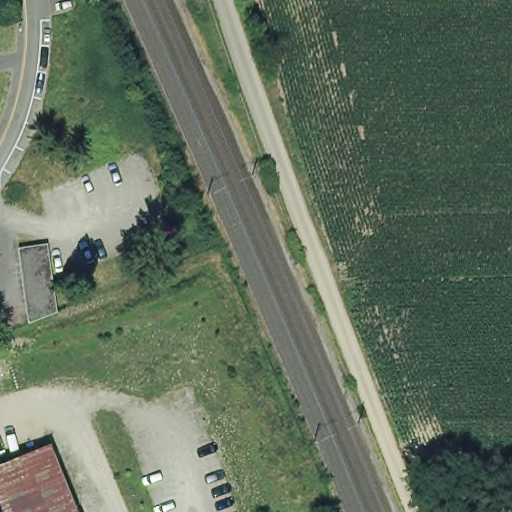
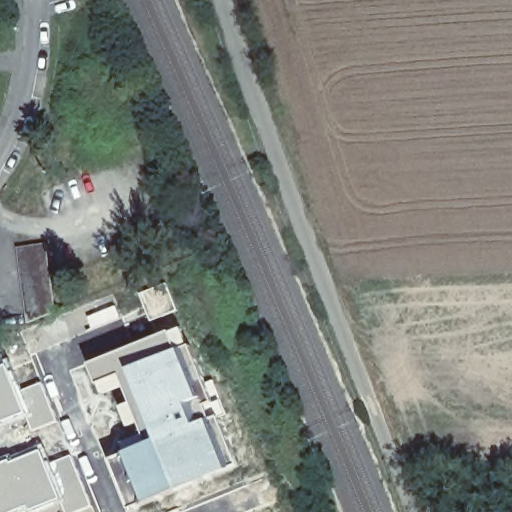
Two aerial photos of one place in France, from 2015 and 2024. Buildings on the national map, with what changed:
unchanged [(30,300),(28,286),(26,273),(25,260),(23,246),(52,243),(54,256),(55,269),(57,283),(59,296),(61,311),(55,313),(33,322),(30,300)]
new [(166,281),(178,312),(151,322),(138,293),(166,281)]
new [(191,345),(215,400),(220,398),(227,414),(220,417),(240,466),(178,491),(155,439),(153,433),(145,437),(139,425),(128,429),(119,406),(129,402),(124,390),(104,397),(89,363),(183,326),(191,345)]
new [(20,390),(26,415),(0,425),(0,365),(7,363),(20,390)]
new [(42,381),(60,422),(33,432),(26,415),(20,390),(42,381)]
unchanged [(63,466),(81,512),(40,512),(18,458),(78,434),(87,456),(63,466)]
new [(155,439),(178,491),(143,504),(122,454),(155,439)]
unchanged [(40,512),(0,512),(0,465),(18,458),(40,512)]

